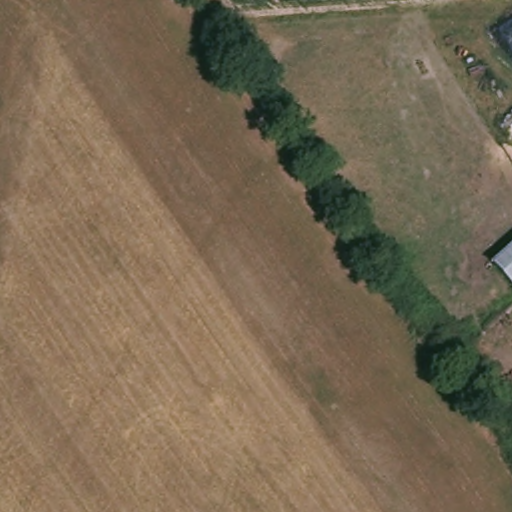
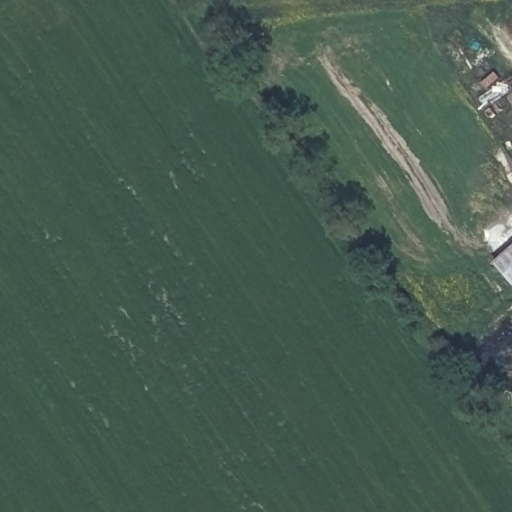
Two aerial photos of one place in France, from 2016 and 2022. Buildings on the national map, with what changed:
unchanged [(512,245),(512,284),(493,262),(512,245)]

